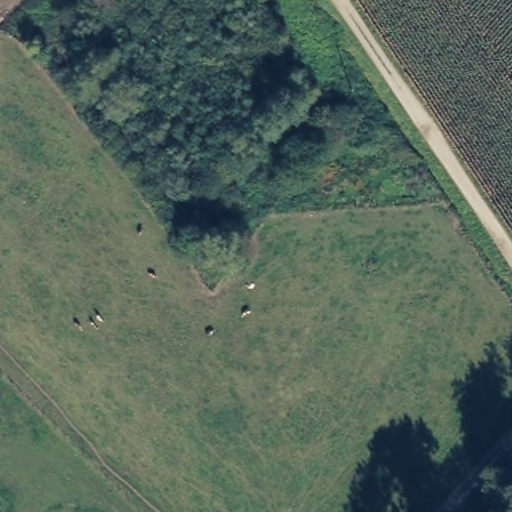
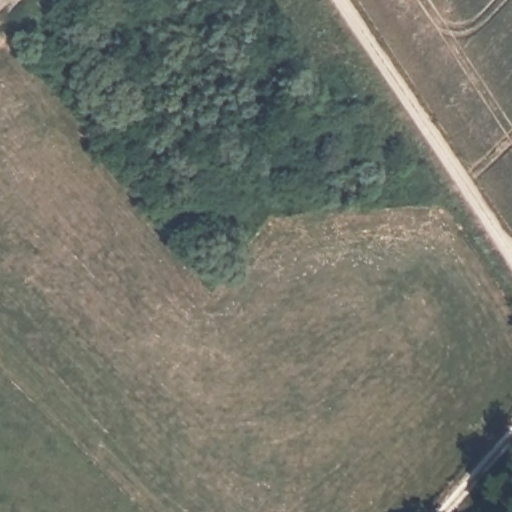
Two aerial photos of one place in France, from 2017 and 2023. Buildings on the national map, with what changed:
[]

